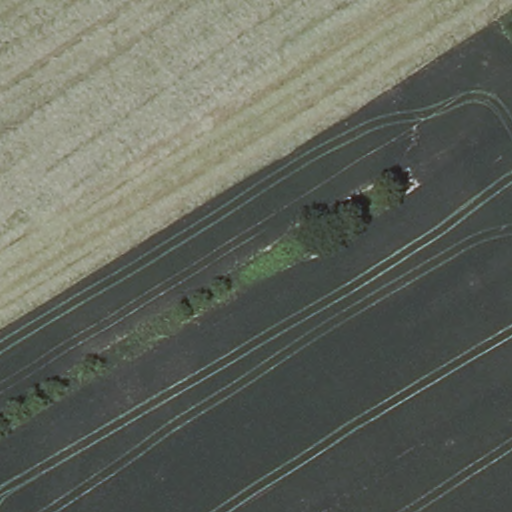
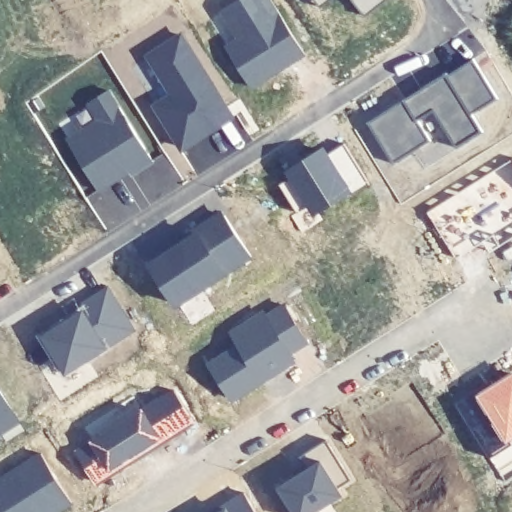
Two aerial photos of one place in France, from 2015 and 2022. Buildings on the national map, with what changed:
new [(243,0),(270,0),(304,57),(251,90),(213,19),(243,0)]
new [(319,9),(312,0),(330,0),(319,9)]
new [(365,18),(350,0),(386,0),(365,18)]
new [(181,32),(234,120),(179,154),(153,107),(169,95),(144,56),(181,32)]
new [(472,61),(496,100),(466,116),(479,134),(456,149),(432,109),(414,120),(427,141),(392,164),(367,123),(472,61)]
new [(96,123),(86,104),(110,90),(154,165),(131,176),(128,170),(96,190),(65,139),(96,123)]
new [(288,183),(284,175),(324,150),(328,156),(343,145),(367,184),(312,218),(307,207),(296,215),(279,187),(288,183)]
new [(512,237),(488,252),(483,241),(454,258),(425,213),(512,162),(512,237)]
new [(198,232),(196,229),(223,212),(251,261),(173,310),(145,267),(198,232)]
new [(82,312),(79,304),(108,287),(138,333),(63,378),(39,337),(82,312)]
new [(235,347),(228,335),(264,312),(268,318),(286,307),(308,345),(289,357),(295,365),(229,405),(206,365),(235,347)]
new [(512,441),(504,446),(474,397),(512,377),(512,441)]
new [(19,422),(0,435),(0,391),(19,422)]
new [(91,441),(173,392),(193,423),(94,487),(74,452),(91,441)]
new [(301,456),(324,442),(349,482),(334,488),(339,497),(315,512),(289,512),(275,490),(309,470),(301,456)]
new [(72,507),(63,512),(0,512),(0,481),(41,456),(72,507)]
new [(221,507),(243,493),(254,512),(223,512),(225,511),(221,507)]

